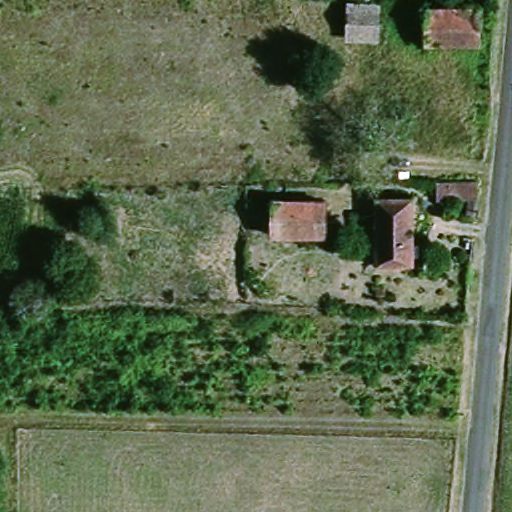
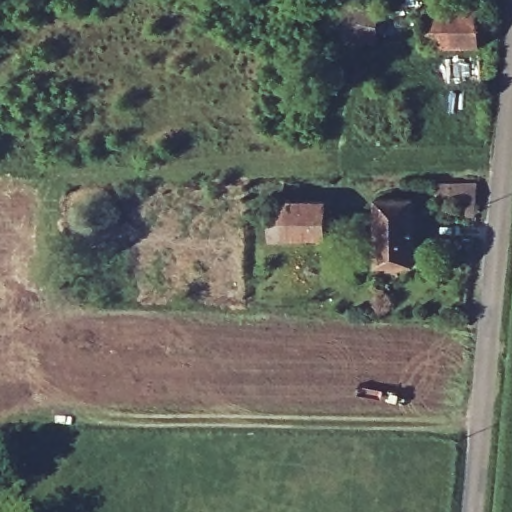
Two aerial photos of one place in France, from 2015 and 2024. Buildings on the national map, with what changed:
unchanged [(344,2),(380,2),(380,42),(344,41),(344,2)]
unchanged [(430,42),(432,7),(477,9),(477,43),(430,42)]
unchanged [(485,177),(477,240),(465,239),(469,215),(438,214),(440,179),(485,177)]
unchanged [(415,267),(380,265),(380,260),(383,195),(418,196),(415,267)]
unchanged [(327,201),(327,240),(272,239),(272,201),(327,201)]

